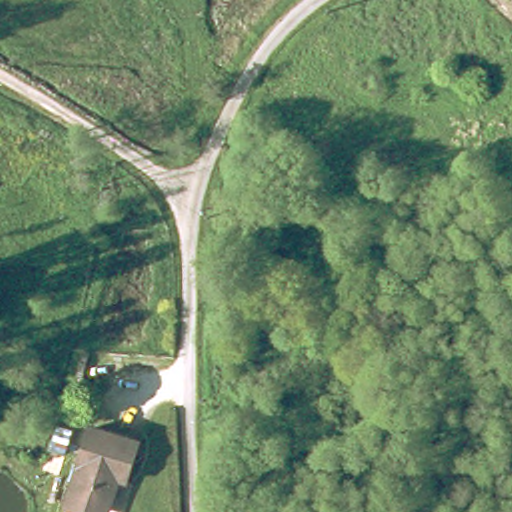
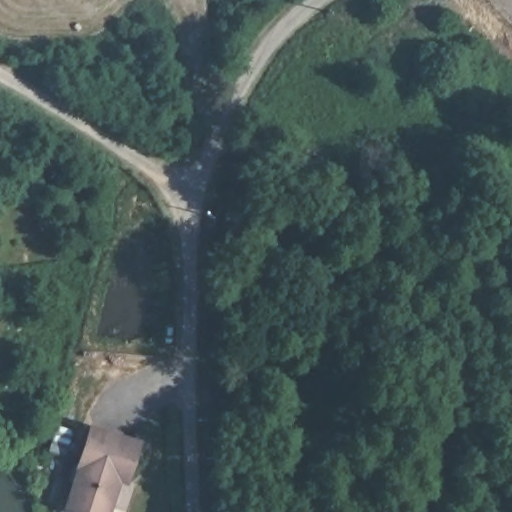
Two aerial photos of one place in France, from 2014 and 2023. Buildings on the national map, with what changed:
unchanged [(86,467),(81,466),(93,425),(141,440),(129,481),(121,478),(113,507),(111,512),(83,512),(72,508),(86,467)]

